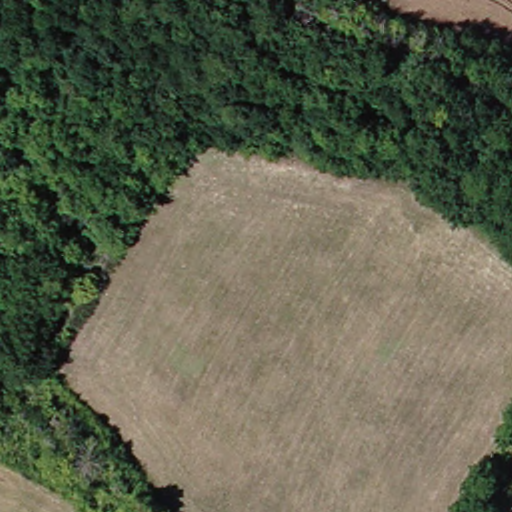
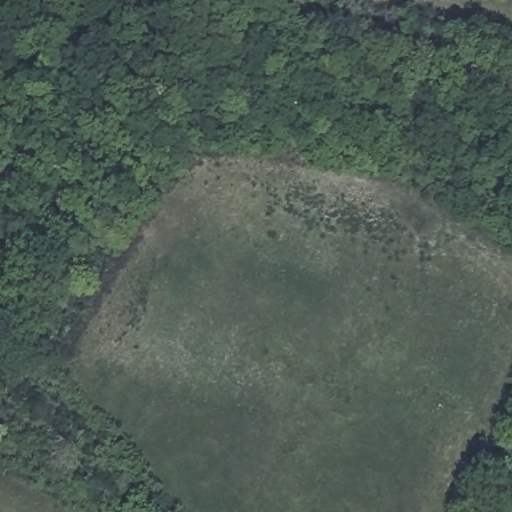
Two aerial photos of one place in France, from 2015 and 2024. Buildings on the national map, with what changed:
[]

